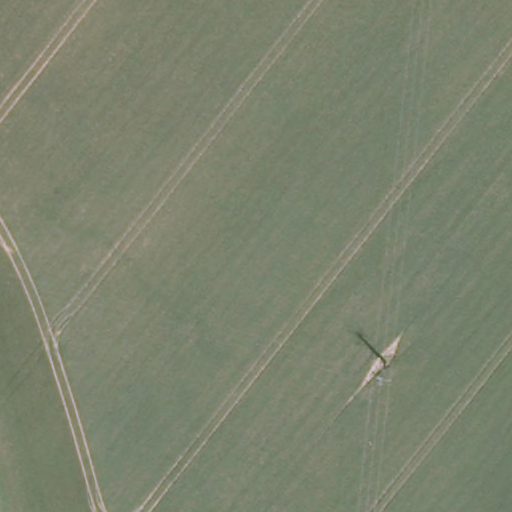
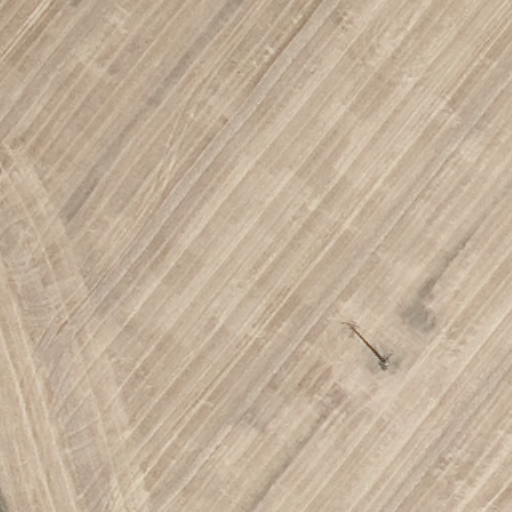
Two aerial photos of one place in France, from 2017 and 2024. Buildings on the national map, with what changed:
[]

